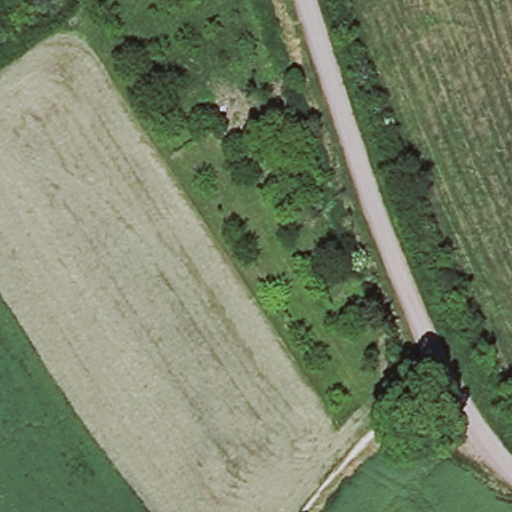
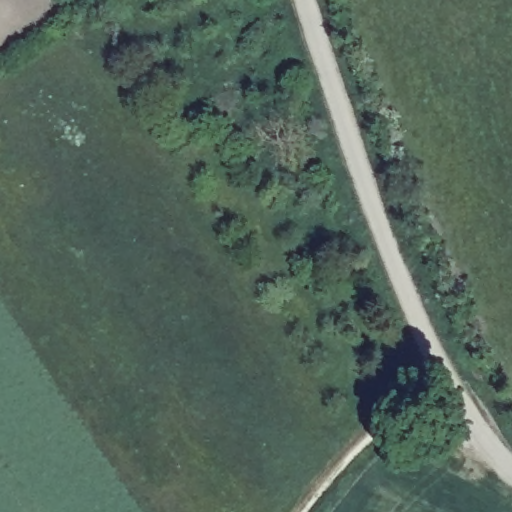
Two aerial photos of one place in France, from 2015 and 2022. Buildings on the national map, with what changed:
unchanged [(257,131),(220,151),(200,115),(211,109),(205,99),(232,85),(257,131)]

